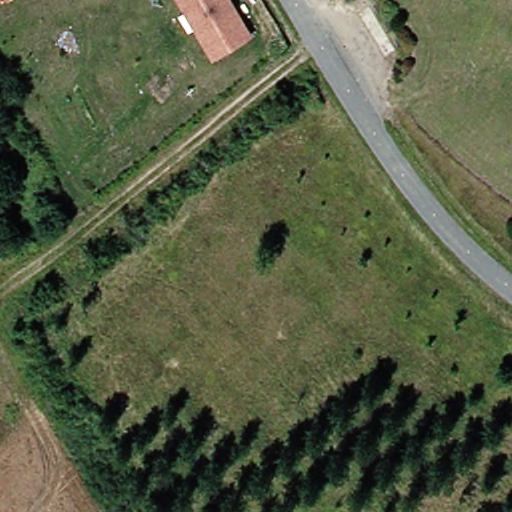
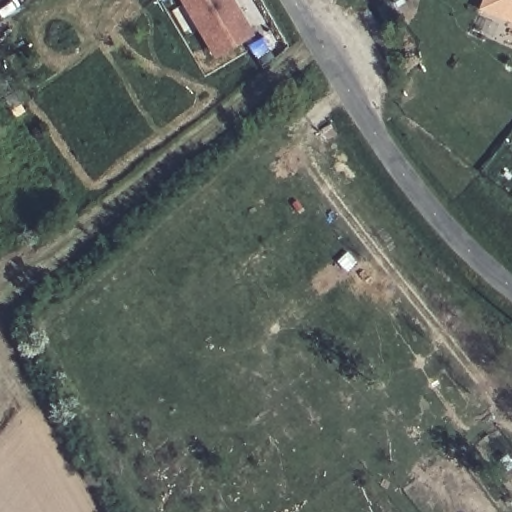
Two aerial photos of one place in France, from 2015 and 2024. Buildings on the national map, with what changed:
unchanged [(181,0),(229,0),(250,33),(213,54),(181,0)]
new [(487,0),(512,0),(512,21),(483,9),(487,0)]

